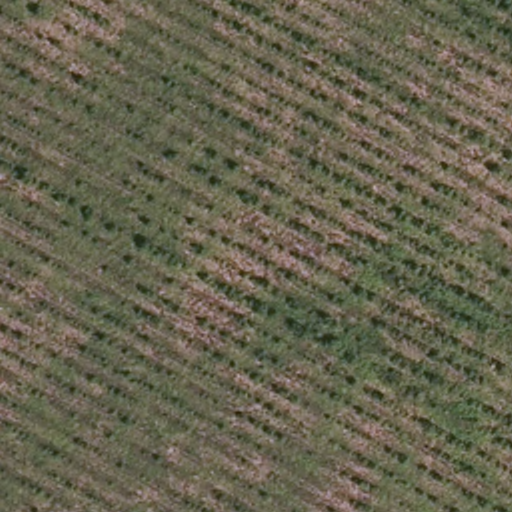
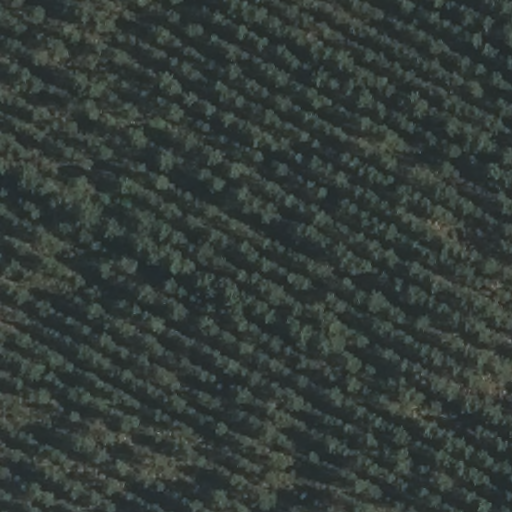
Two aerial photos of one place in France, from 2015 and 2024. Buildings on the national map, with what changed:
[]

